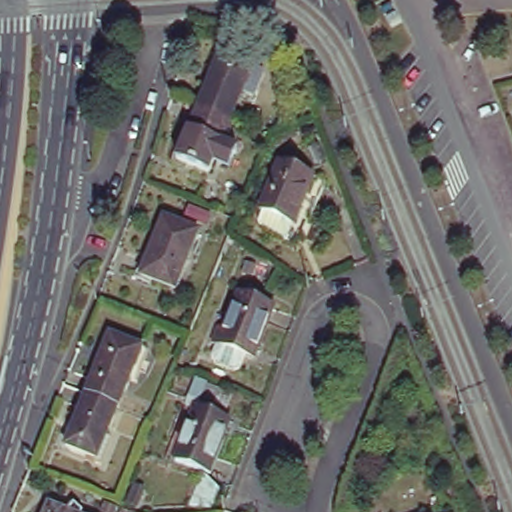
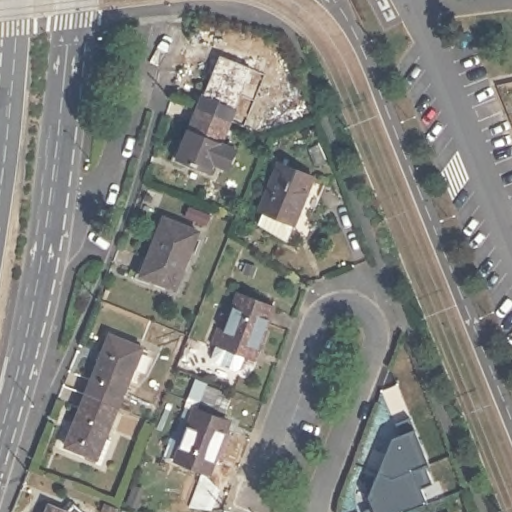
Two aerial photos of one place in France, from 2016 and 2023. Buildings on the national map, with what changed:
unchanged [(220,50),(263,68),(257,86),(245,80),(230,117),(197,104),(220,50)]
unchanged [(218,143),(227,147),(221,161),(213,158),(208,169),(176,157),(197,104),(230,117),(218,143)]
unchanged [(283,159),(317,173),(298,221),(288,247),(253,231),(263,206),(283,159)]
unchanged [(202,232),(179,290),(145,277),(169,219),(202,232)]
unchanged [(223,328),(230,331),(244,296),(278,308),(259,360),(217,344),(223,328)]
unchanged [(115,340),(146,354),(122,412),(91,400),(115,340)]
unchanged [(227,390),(221,408),(209,404),(209,401),(198,397),(204,381),(227,390)]
unchanged [(101,464),(70,451),(91,400),(122,412),(101,464)]
unchanged [(204,409),(238,421),(218,474),(186,461),(186,459),(176,455),(194,408),(203,412),(204,409)]
new [(372,508),(368,498),(392,439),(399,435),(396,423),(410,419),(432,483),(421,488),(426,504),(404,512),(363,512),(362,511),(372,508)]
unchanged [(210,473),(225,487),(215,506),(193,504),(204,471),(210,473)]

